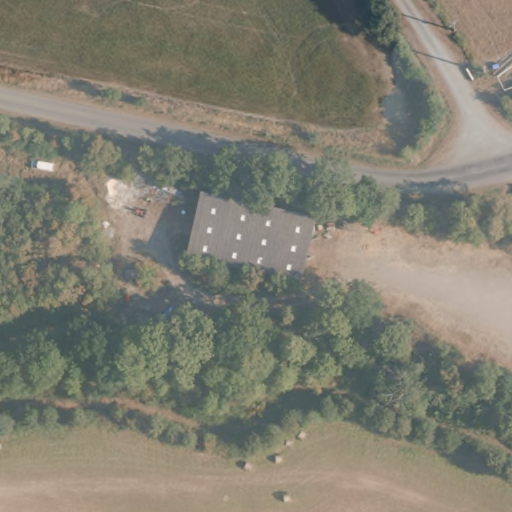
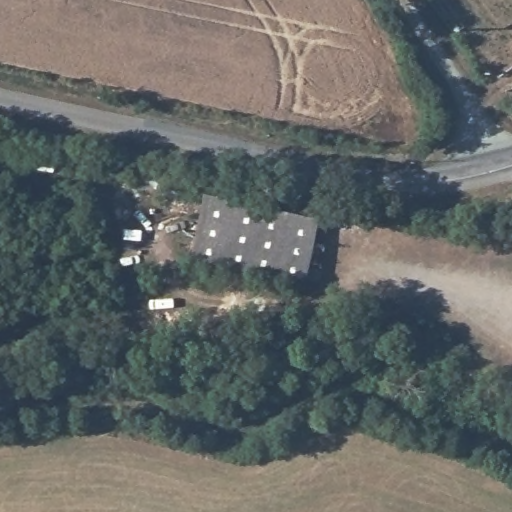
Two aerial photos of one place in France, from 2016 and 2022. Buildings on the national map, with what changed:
unchanged [(303,283),(280,277),(275,300),(185,280),(201,195),(315,220),(303,283)]

